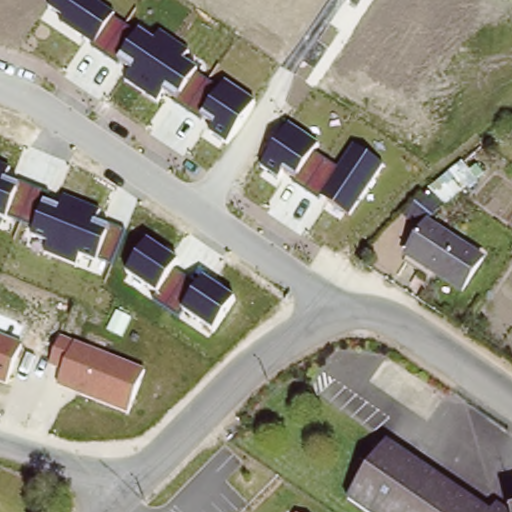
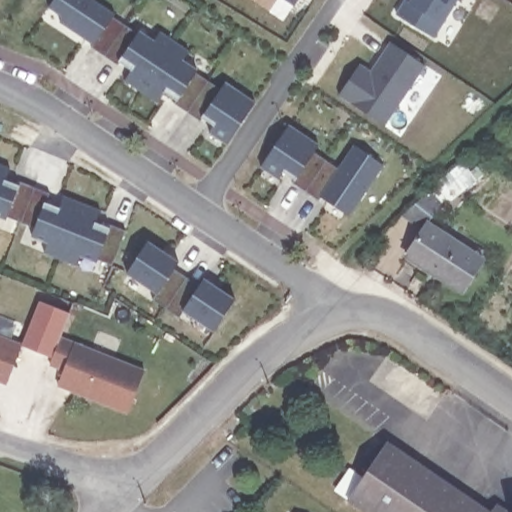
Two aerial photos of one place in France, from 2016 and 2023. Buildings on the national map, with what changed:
unchanged [(93,45),(60,23),(63,16),(49,7),(54,0),(94,0),(116,14),(114,16),(125,24),(103,56),(91,49),(93,45)]
new [(286,0),(297,0),(294,5),(286,0)]
new [(457,0),(443,24),(439,22),(433,38),(394,14),(402,0),(457,0)]
unchanged [(173,104),(178,98),(164,90),(157,102),(125,81),(133,69),(119,60),(116,65),(103,56),(125,24),(138,32),(140,29),(156,39),(161,31),(190,50),(183,58),(199,69),(196,73),(209,80),(188,113),(173,104)]
new [(359,63),(371,70),(390,41),(425,64),(384,127),(336,96),(359,63)]
unchanged [(226,144),(208,132),(214,124),(203,116),(200,120),(188,113),(209,80),(221,88),(226,81),(256,101),(226,144)]
unchanged [(292,182),(296,177),(284,168),(279,179),(260,168),(289,124),(319,144),(314,152),(326,160),(304,191),(292,182)]
unchanged [(349,218),(321,196),(318,200),(304,191),(326,160),(338,168),(353,145),(384,165),(349,218)]
unchanged [(428,189),(462,160),(477,182),(444,206),(429,221),(423,230),(401,215),(428,189)]
unchanged [(9,166),(5,177),(34,187),(20,222),(6,218),(0,215),(0,163),(9,166)]
unchanged [(101,209),(98,219),(125,230),(113,264),(99,259),(98,262),(80,255),(76,265),(44,253),(48,242),(31,236),(34,229),(20,222),(34,187),(63,201),(64,196),(101,209)]
unchanged [(463,290),(407,254),(429,221),(484,258),(463,290)]
unchanged [(152,299),(156,293),(126,272),(148,240),(179,261),(173,270),(185,275),(164,308),(152,299)]
unchanged [(214,332),(183,310),(178,317),(164,308),(185,275),(198,286),(204,277),(235,298),(214,332)]
new [(39,301),(71,314),(61,337),(53,355),(23,344),(39,301)]
unchanged [(23,344),(6,386),(0,383),(0,335),(23,344)]
unchanged [(146,369),(128,413),(58,386),(63,374),(48,368),(61,337),(146,369)]
unchanged [(354,496),(394,439),(497,510),(503,502),(512,509),(512,512),(377,512),(354,496)]

